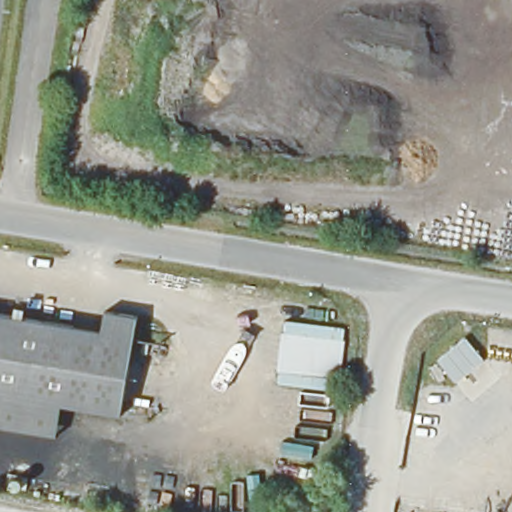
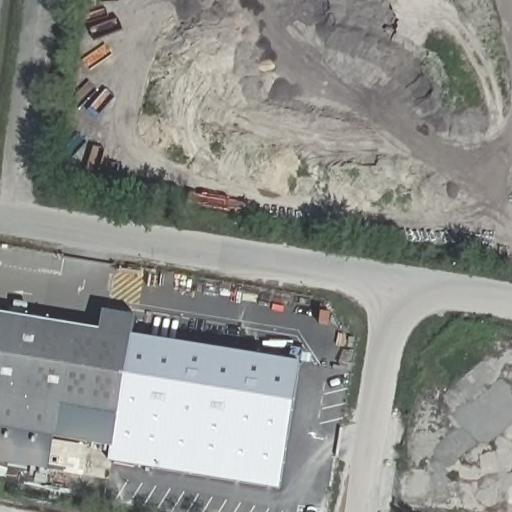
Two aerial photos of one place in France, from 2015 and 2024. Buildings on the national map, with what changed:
unchanged [(96,330),(99,310),(131,314),(129,334),(118,415),(60,407),(0,399),(0,317),(96,330)]
new [(300,363),(279,489),(110,461),(112,446),(116,447),(118,415),(129,334),(300,363)]
unchanged [(60,407),(118,415),(116,447),(55,438),(52,473),(0,464),(0,399),(60,407)]

